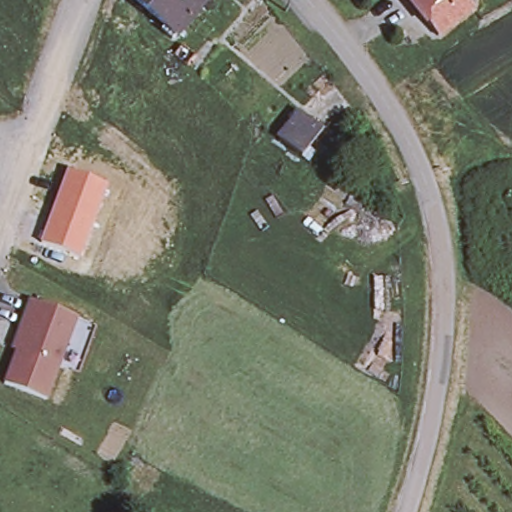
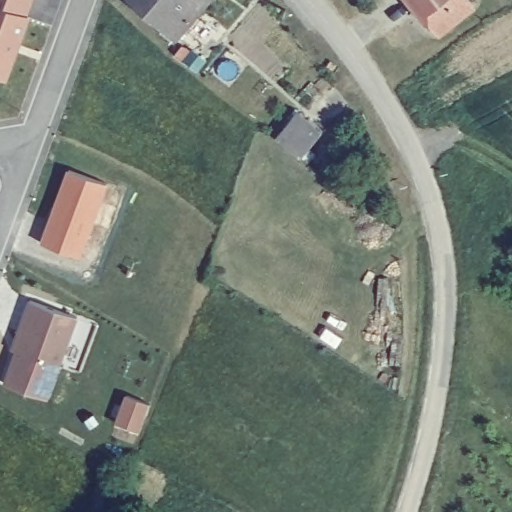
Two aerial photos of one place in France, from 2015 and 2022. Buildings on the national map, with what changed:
new [(0,0),(32,0),(28,14),(32,16),(8,80),(0,77),(0,0)]
unchanged [(134,0),(206,0),(176,34),(134,0)]
unchanged [(404,0),(436,0),(416,15),(404,0)]
unchanged [(433,37),(416,15),(436,0),(463,0),(469,8),(433,37)]
unchanged [(279,146),(283,142),(301,119),(326,138),(308,161),(304,166),(279,146)]
unchanged [(108,185),(79,258),(41,242),(67,169),(108,185)]
unchanged [(19,344),(13,341),(28,302),(78,317),(48,398),(5,382),(19,344)]

